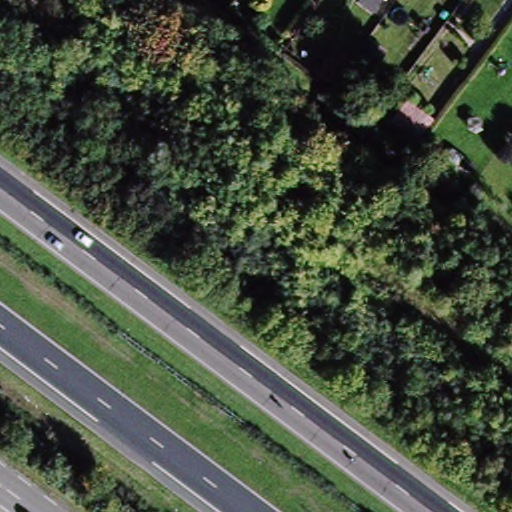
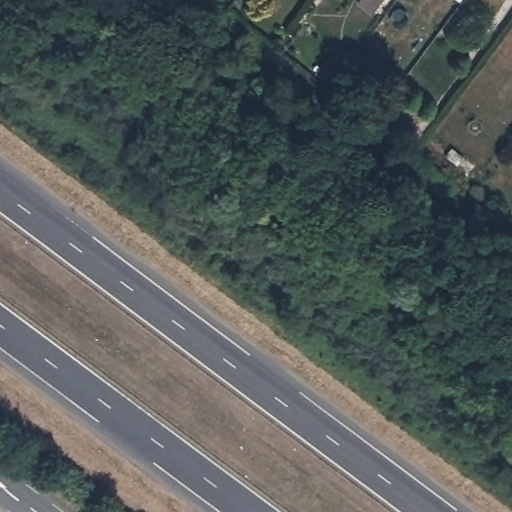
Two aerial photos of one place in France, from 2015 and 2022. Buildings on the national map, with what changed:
unchanged [(423,109),(441,122),(427,142),(408,129),(423,109)]
unchanged [(456,141),(468,150),(463,158),(450,149),(456,141)]

